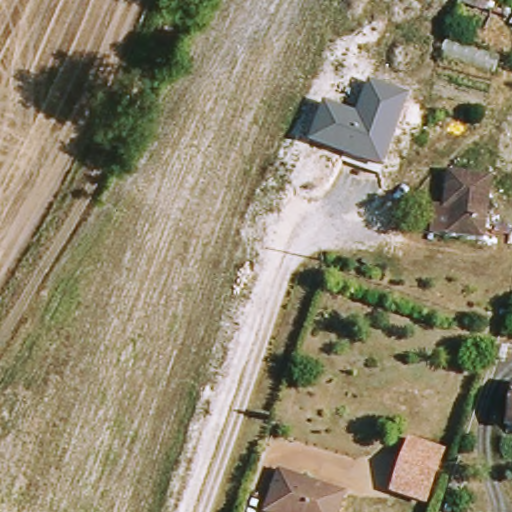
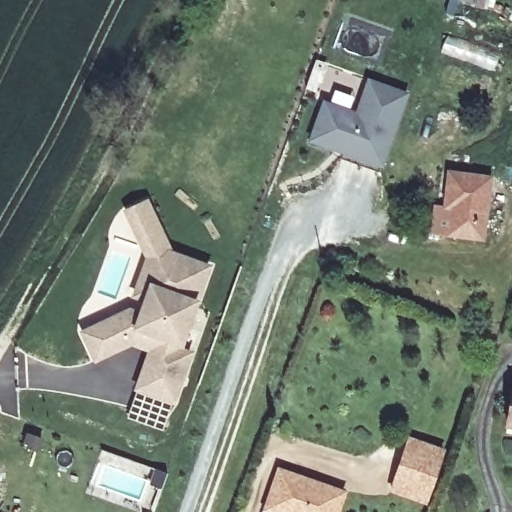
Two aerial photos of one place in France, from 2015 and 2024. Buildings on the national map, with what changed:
unchanged [(323,97),(357,110),(369,78),(409,91),(384,167),(308,140),(323,97)]
unchanged [(440,201),(449,204),(458,172),(499,184),(483,243),(448,233),(448,231),(433,227),(440,201)]
new [(130,307),(139,310),(143,301),(131,297),(146,258),(123,211),(149,199),(172,250),(213,263),(198,302),(183,346),(195,352),(176,405),(134,391),(148,352),(131,346),(94,362),(79,332),(130,307)]
unchanged [(512,409),(512,431),(508,430),(512,409)]
new [(410,437),(446,449),(427,506),(389,493),(410,437)]
unchanged [(268,512),(266,511),(280,472),(346,498),(341,512),(268,512)]

